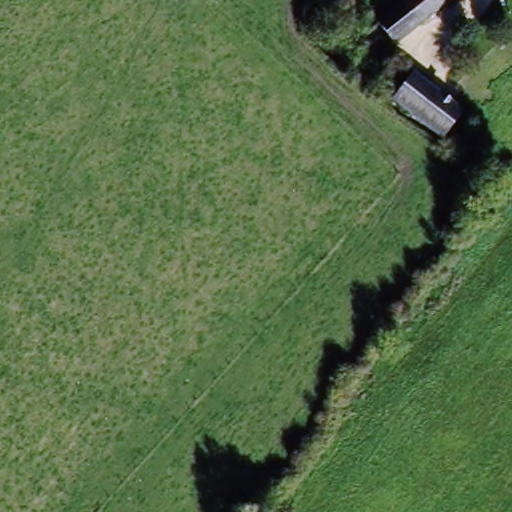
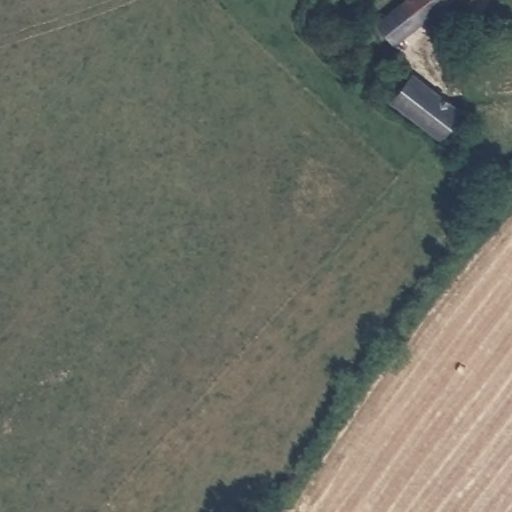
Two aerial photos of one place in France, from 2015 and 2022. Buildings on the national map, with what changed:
unchanged [(395,0),(441,0),(412,21),(390,36),(375,14),(395,0)]
unchanged [(394,102),(412,77),(441,99),(462,115),(445,140),(423,124),(394,102)]

